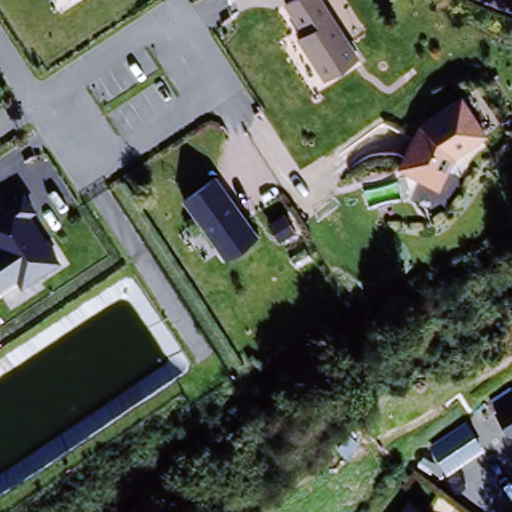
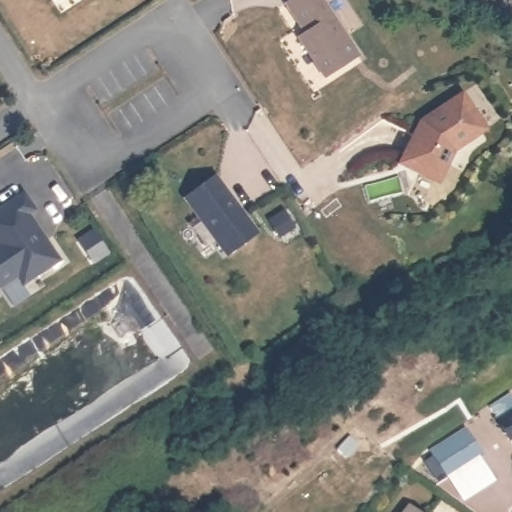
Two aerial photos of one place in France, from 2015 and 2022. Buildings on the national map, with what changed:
unchanged [(363,51),(329,73),(303,35),(310,31),(290,1),(291,0),(329,0),(363,51)]
unchanged [(399,158),(421,118),(461,92),(485,128),(453,148),(438,172),(430,176),(399,158)]
unchanged [(216,175),(258,231),(229,253),(186,196),(216,175)]
unchanged [(0,233),(0,205),(30,187),(40,203),(32,208),(63,254),(28,276),(0,233)]
unchanged [(501,420),(512,413),(512,438),(501,420)]
unchanged [(485,452),(448,472),(435,444),(471,427),(485,452)]

